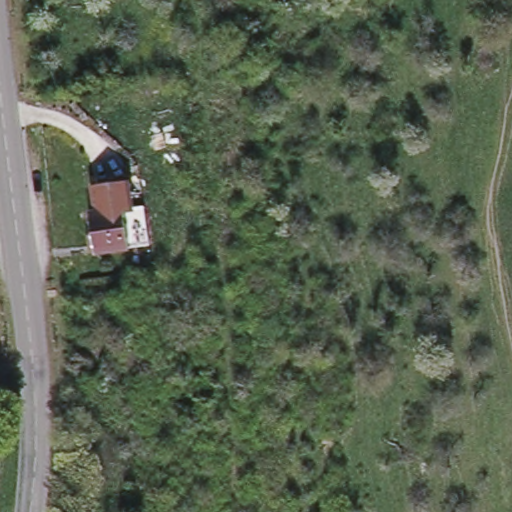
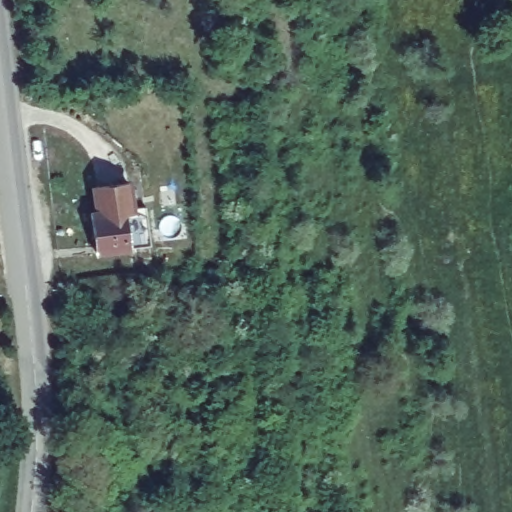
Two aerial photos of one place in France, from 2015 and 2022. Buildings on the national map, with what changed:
unchanged [(104,209),(100,183),(133,179),(136,204),(150,203),(155,242),(136,245),(131,206),(104,209)]
unchanged [(102,250),(96,210),(104,209),(131,206),(136,245),(102,250)]

